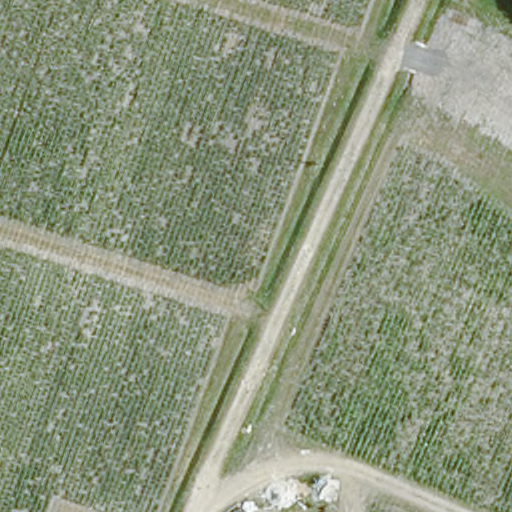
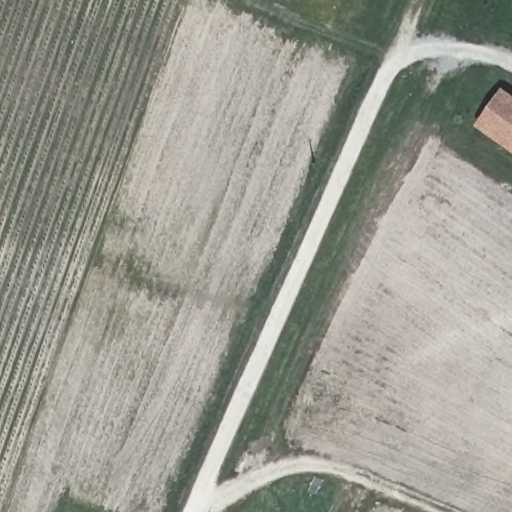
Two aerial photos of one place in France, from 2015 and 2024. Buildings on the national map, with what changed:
new [(503,89),(512,95),(512,152),(476,127),(503,89)]

